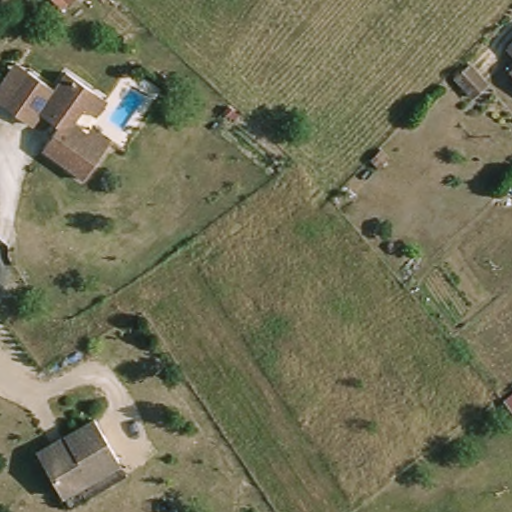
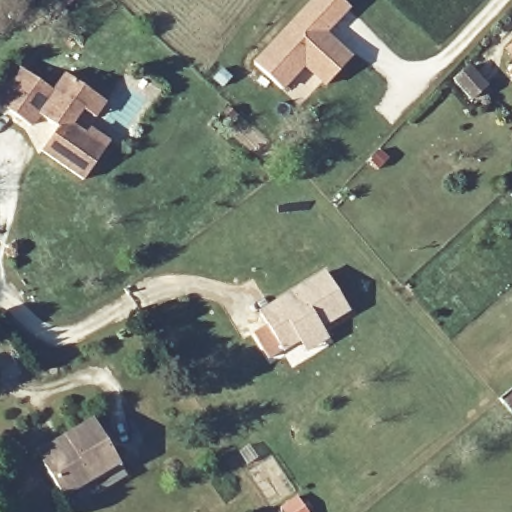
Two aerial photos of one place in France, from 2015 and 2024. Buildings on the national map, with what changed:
new [(313,0),(342,0),(349,6),(324,32),(351,58),(325,85),(304,64),(281,89),(254,63),(313,0)]
unchanged [(511,45),(512,43),(512,46),(511,45)]
unchanged [(85,175),(44,146),(59,124),(39,110),(31,122),(5,104),(0,100),(0,87),(18,62),(30,70),(54,87),(65,71),(95,90),(105,98),(95,114),(84,106),(74,121),(88,130),(90,125),(111,138),(107,145),(85,175)]
new [(466,65),(483,85),(468,97),(451,79),(466,65)]
new [(304,353),(297,342),(281,352),(264,326),(258,315),(269,308),(324,274),(347,311),(319,328),(325,339),(304,353)]
new [(503,403),(512,397),(512,415),(503,403)]
unchanged [(43,452),(39,445),(67,430),(96,413),(122,454),(65,490),(43,452)]
unchanged [(122,454),(130,468),(73,502),(65,490),(122,454)]

